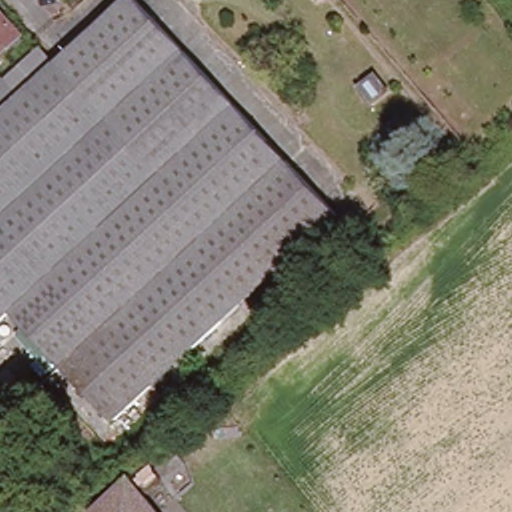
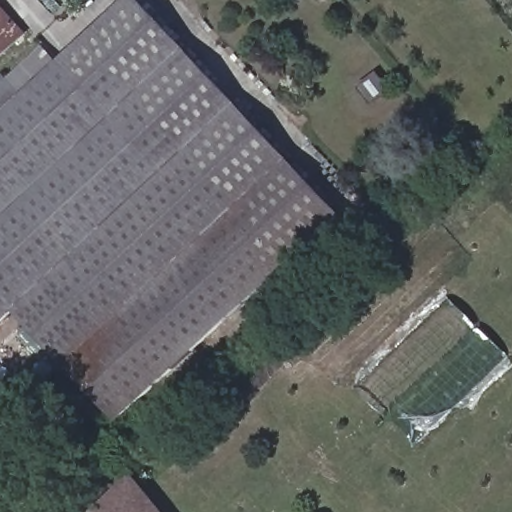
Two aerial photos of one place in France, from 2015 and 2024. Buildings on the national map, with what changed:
unchanged [(267,280),(190,352),(0,143),(0,70),(5,76),(44,43),(56,57),(61,52),(97,21),(122,0),(140,0),(339,214),(301,249),(267,280)]
unchanged [(22,32),(0,51),(0,8),(22,32)]
unchanged [(375,93),(358,74),(375,60),(391,79),(375,93)]
unchanged [(190,352),(119,417),(16,306),(0,321),(0,143),(190,352)]
new [(355,386),(448,297),(508,355),(415,446),(355,386)]
unchanged [(111,486),(132,466),(142,478),(135,485),(157,512),(91,512),(114,490),(111,486)]

